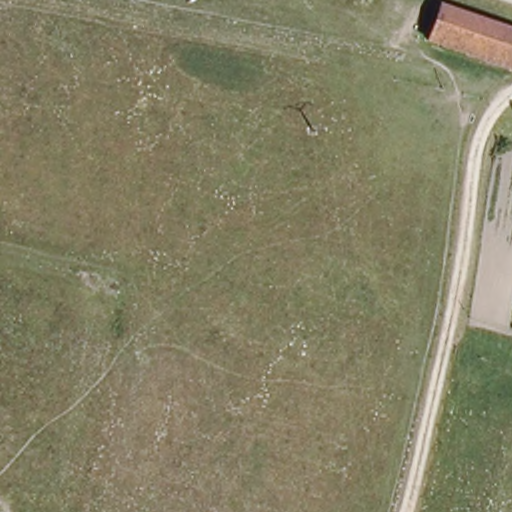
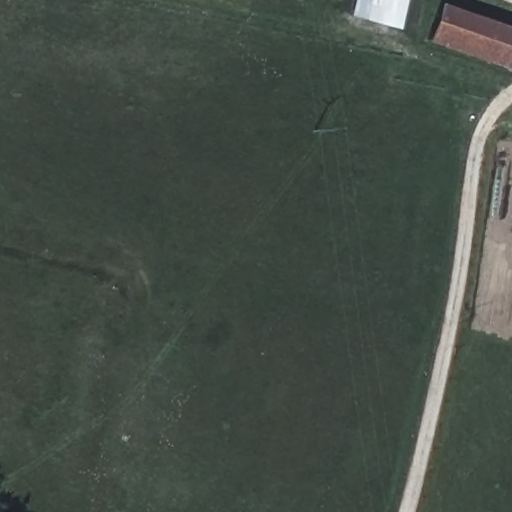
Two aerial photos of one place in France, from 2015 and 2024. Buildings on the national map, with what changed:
new [(349,16),(353,0),(406,0),(400,30),(349,16)]
unchanged [(439,6),(512,32),(512,70),(428,39),(439,6)]

